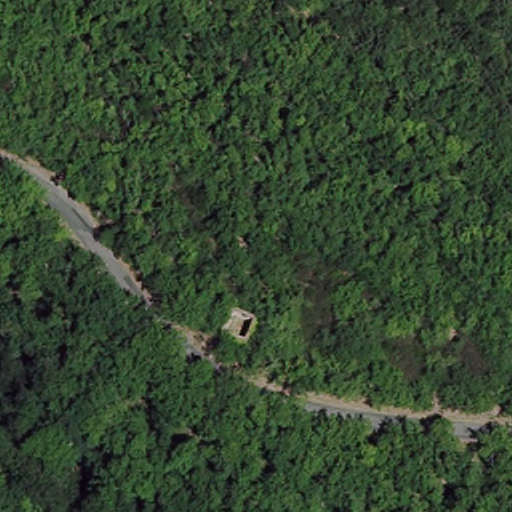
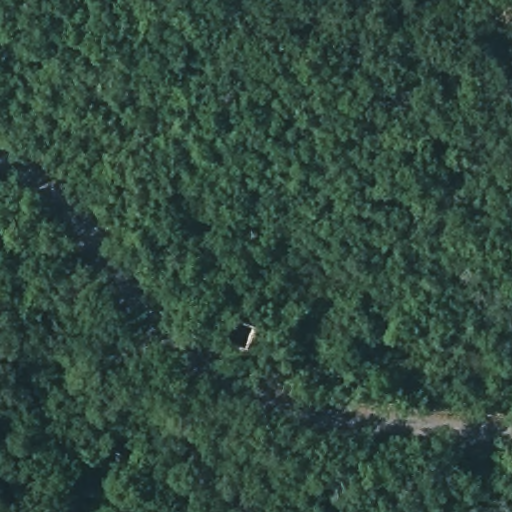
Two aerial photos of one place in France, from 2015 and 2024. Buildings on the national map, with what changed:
unchanged [(254,328),(251,349),(225,344),(228,324),(254,328)]

